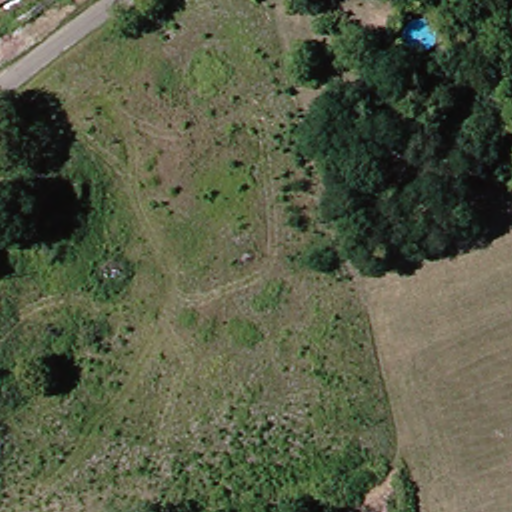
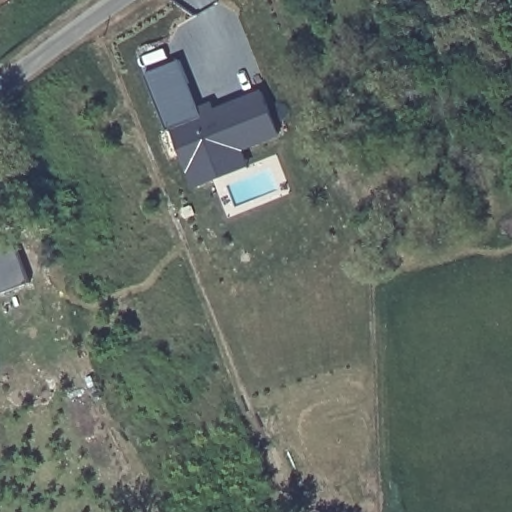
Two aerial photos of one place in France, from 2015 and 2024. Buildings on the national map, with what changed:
new [(198,189),(175,129),(169,131),(147,76),(181,62),(200,107),(215,102),(217,109),(262,90),(282,137),(245,152),(248,169),(223,179),(198,189)]
unchanged [(84,202),(76,250),(37,245),(44,195),(84,202)]

